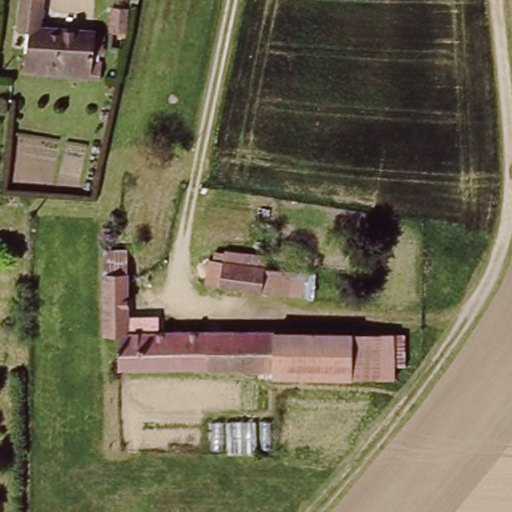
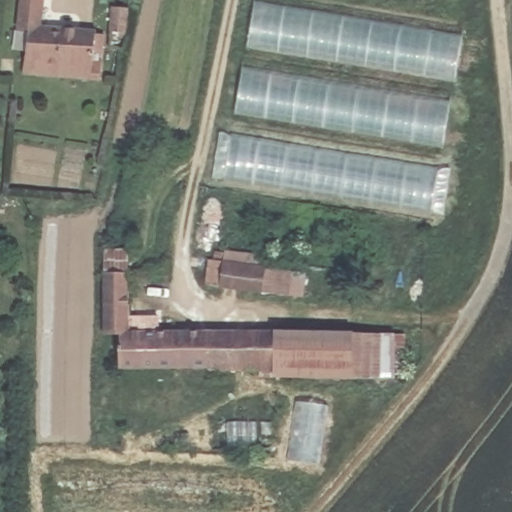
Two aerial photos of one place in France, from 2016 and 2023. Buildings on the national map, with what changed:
unchanged [(25,25),(27,0),(47,0),(45,20),(97,30),(96,56),(102,56),(101,77),(27,64),(31,25),(25,25)]
new [(247,44),(253,1),(462,35),(456,77),(247,44)]
new [(109,32),(110,5),(130,6),(127,33),(109,32)]
demolished [(142,11),(140,34),(128,33),(131,10),(142,11)]
new [(445,142),(235,110),(242,66),(450,103),(445,142)]
new [(225,179),(231,135),(438,169),(432,212),(225,179)]
unchanged [(202,285),(206,247),(302,260),(300,298),(202,285)]
unchanged [(118,372),(117,334),(98,332),(100,252),(132,252),(130,321),(255,325),(255,376),(118,372)]
unchanged [(255,325),(271,325),(400,330),(395,376),(273,376),(255,376),(255,325)]

